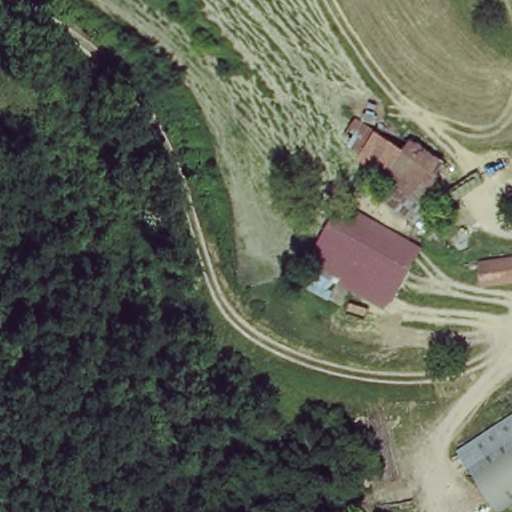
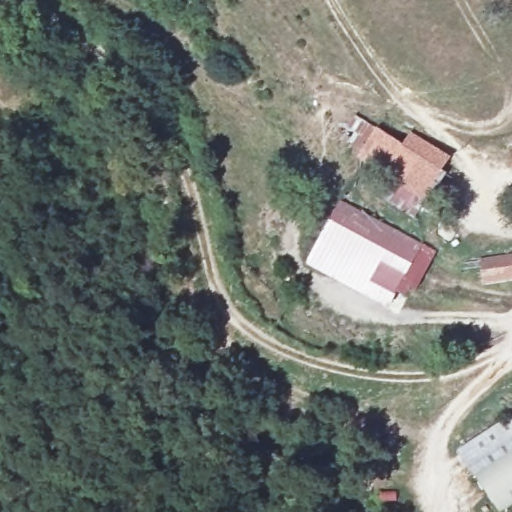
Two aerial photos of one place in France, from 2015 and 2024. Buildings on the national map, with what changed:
unchanged [(381,124),(437,163),(412,198),(356,159),(381,124)]
unchanged [(346,202),(420,253),(395,288),(321,238),(346,202)]
unchanged [(395,288),(381,309),(307,259),(321,238),(395,288)]
unchanged [(492,285),(488,266),(512,260),(512,281),(492,285)]
unchanged [(512,448),(512,508),(507,512),(499,512),(474,475),(512,448)]

